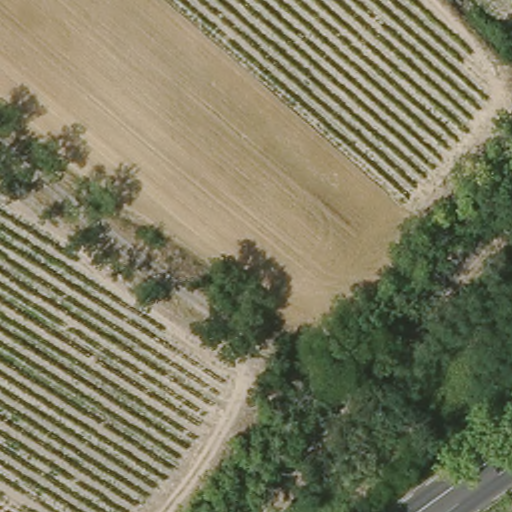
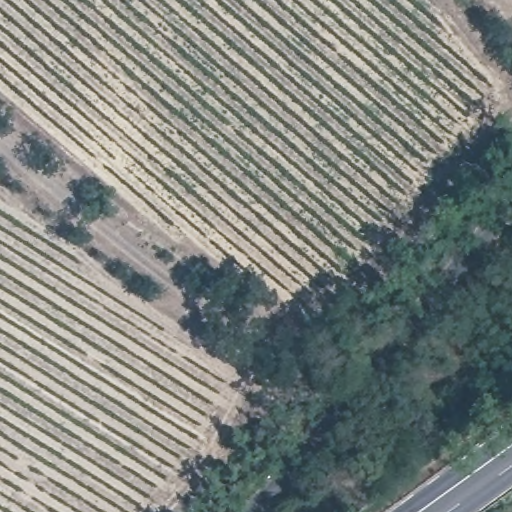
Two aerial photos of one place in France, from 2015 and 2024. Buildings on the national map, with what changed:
[]

